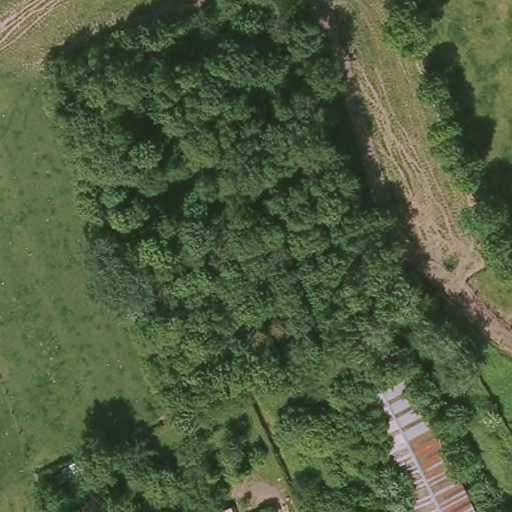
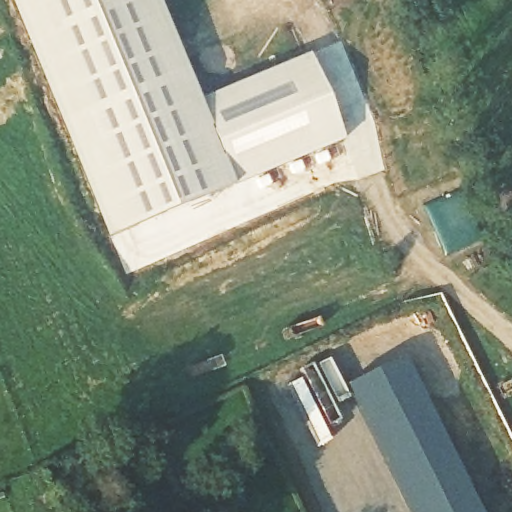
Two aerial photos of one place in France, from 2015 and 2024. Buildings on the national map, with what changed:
new [(7,0),(156,0),(198,101),(309,55),(344,141),(106,239),(7,0)]
unchanged [(404,357),(438,422),(434,424),(477,512),(406,512),(344,387),(404,357)]

